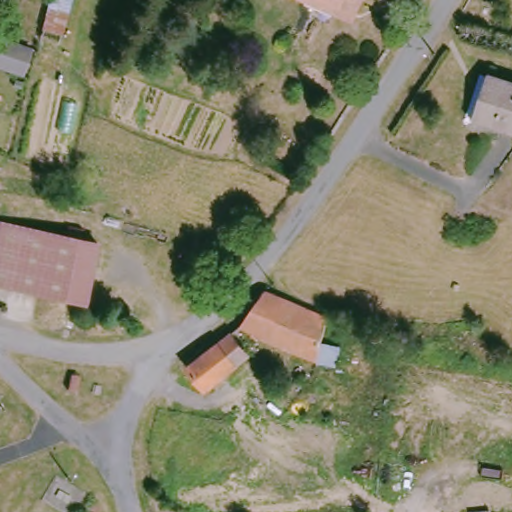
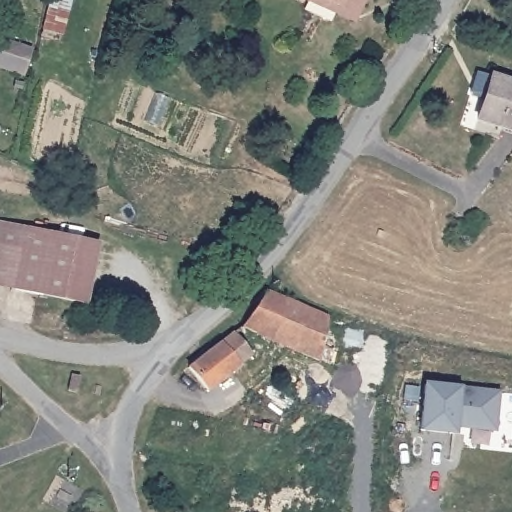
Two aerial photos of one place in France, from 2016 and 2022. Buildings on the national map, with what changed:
unchanged [(71,0),(62,34),(43,30),(51,0),(71,0)]
unchanged [(362,0),(356,13),(353,20),(307,0),(362,0)]
unchanged [(23,74),(0,68),(0,39),(32,49),(23,74)]
unchanged [(498,126),(477,119),(468,116),(481,73),(491,76),(512,84),(512,128),(499,123),(498,126)]
unchanged [(81,299),(0,282),(0,219),(94,239),(81,299)]
unchanged [(337,366),(319,360),(242,326),(266,291),(327,318),(322,345),(341,351),(337,366)]
unchanged [(221,343),(234,332),(250,355),(238,365),(207,390),(188,368),(212,350),(221,343)]
new [(423,426),(428,380),(501,389),(497,427),(467,424),(467,422),(457,420),(456,430),(423,426)]

